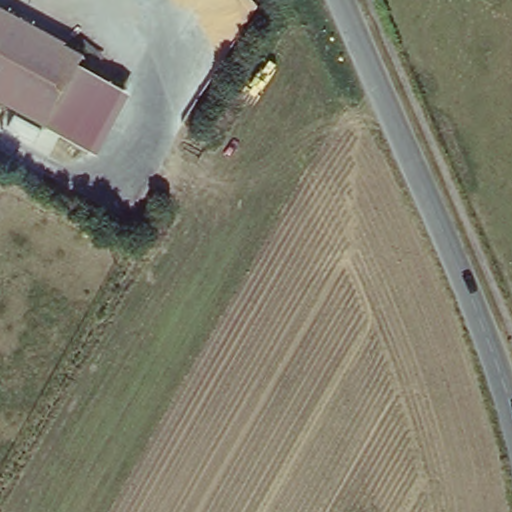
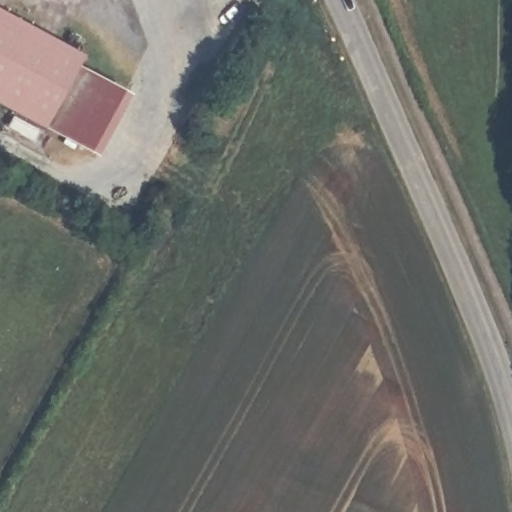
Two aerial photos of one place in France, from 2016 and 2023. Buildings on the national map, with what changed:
unchanged [(75,47),(72,54),(126,87),(95,149),(0,97),(0,6),(75,47)]

